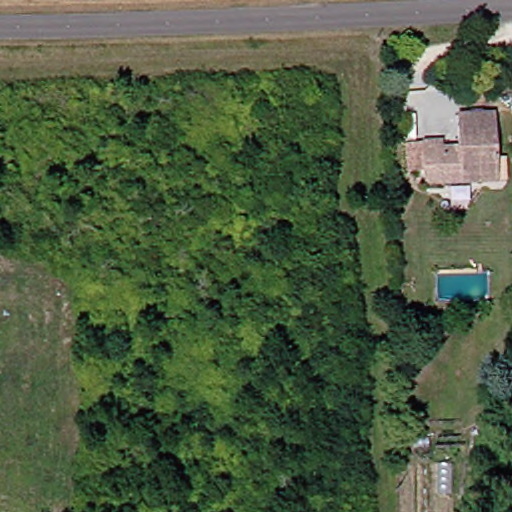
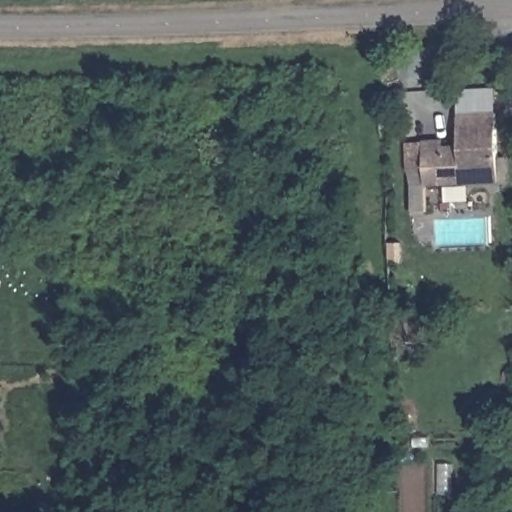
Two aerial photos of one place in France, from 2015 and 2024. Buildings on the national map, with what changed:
unchanged [(432,187),(431,172),(413,172),(413,144),(430,144),(450,142),(451,152),(464,152),(463,115),(496,114),(499,185),(466,186),(447,187),(432,187)]

